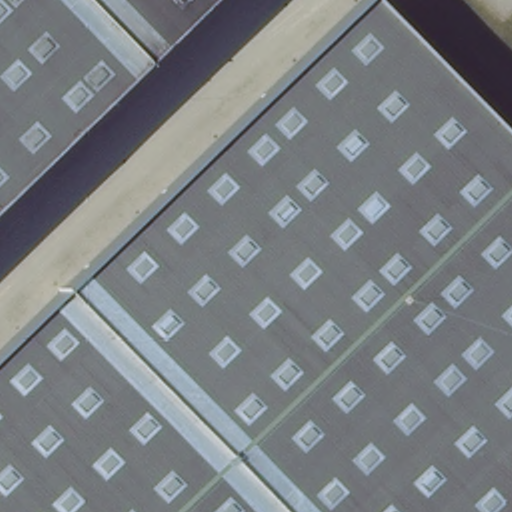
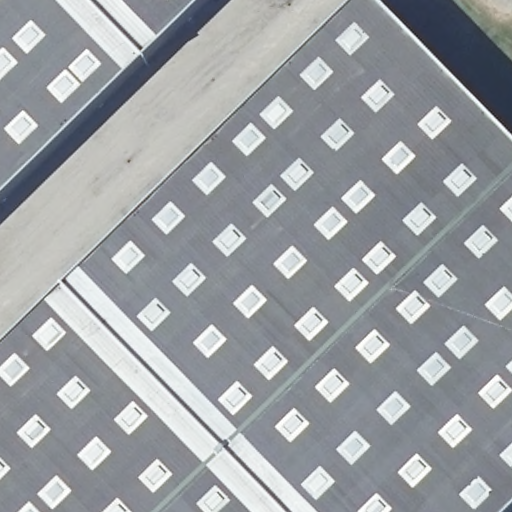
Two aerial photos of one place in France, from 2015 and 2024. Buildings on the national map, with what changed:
unchanged [(209,0),(0,205),(0,0),(209,0)]
unchanged [(365,0),(377,0),(512,143),(512,512),(0,512),(0,355),(365,0)]

